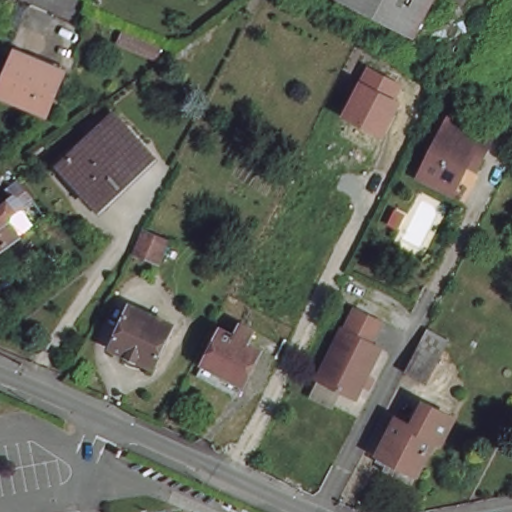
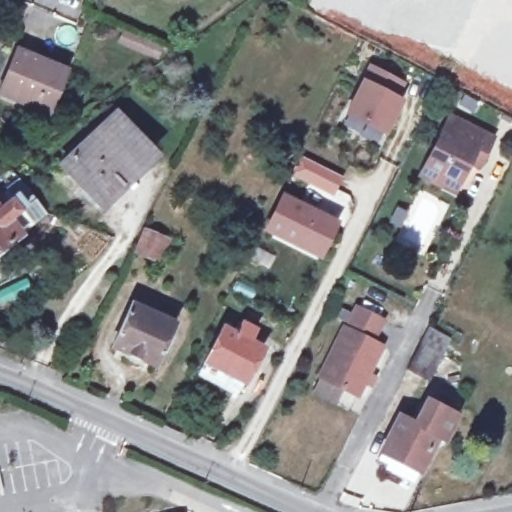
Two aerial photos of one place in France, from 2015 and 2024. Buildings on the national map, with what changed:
demolished [(407,31),(350,0),(425,0),(407,31)]
unchanged [(45,64),(44,70),(61,76),(47,114),(0,95),(0,86),(14,52),(45,64)]
unchanged [(369,64),(405,83),(398,95),(404,98),(384,137),(342,114),(369,64)]
unchanged [(155,154),(100,205),(61,163),(116,112),(155,154)]
unchanged [(489,138),(474,167),(465,162),(449,191),(416,174),(447,117),(489,138)]
unchanged [(5,195),(0,188),(15,176),(30,195),(0,218),(0,199),(5,195)]
new [(320,260),(263,231),(282,194),(338,221),(320,260)]
unchanged [(8,236),(0,242),(0,225),(8,236)]
unchanged [(166,240),(157,258),(135,247),(145,230),(166,240)]
demolished [(261,271),(243,305),(231,299),(248,264),(261,271)]
unchanged [(174,322),(154,366),(111,346),(130,303),(174,322)]
unchanged [(355,309),(380,322),(371,338),(346,325),(355,309)]
unchanged [(378,348),(351,397),(315,377),(340,328),(378,348)]
unchanged [(243,333),(249,336),(244,347),(256,355),(239,386),(201,366),(220,333),(230,339),(236,330),(236,329),(243,333)]
unchanged [(407,370),(420,346),(429,329),(450,340),(441,357),(428,380),(407,370)]
unchanged [(382,461),(384,457),(375,453),(378,446),(397,411),(415,419),(426,395),(451,407),(455,409),(443,436),(437,432),(418,469),(413,478),(382,461)]

